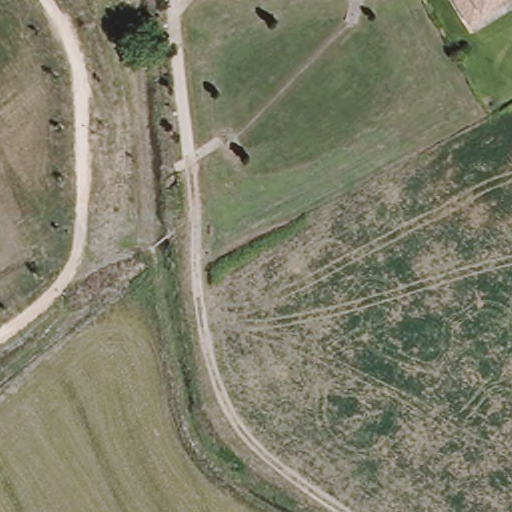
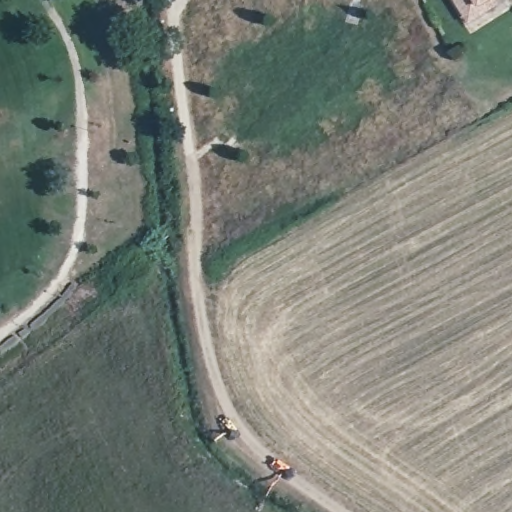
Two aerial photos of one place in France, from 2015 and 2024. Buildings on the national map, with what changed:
unchanged [(470,24),(467,17),(456,0),(497,0),(500,5),(470,24)]

